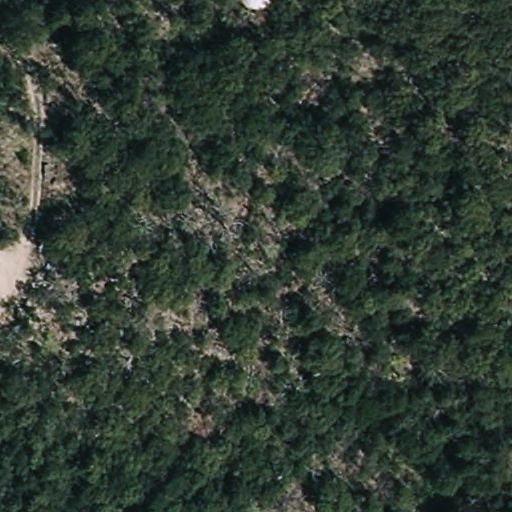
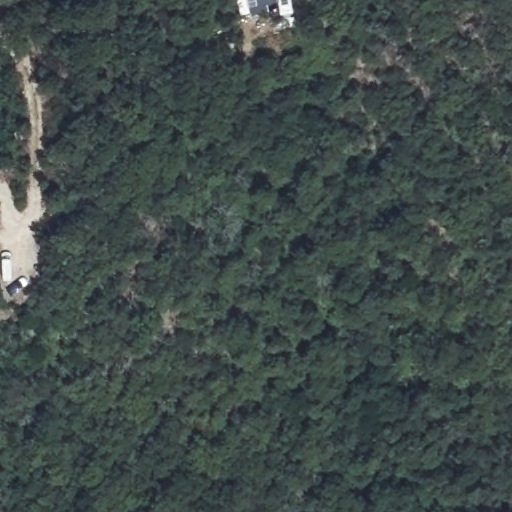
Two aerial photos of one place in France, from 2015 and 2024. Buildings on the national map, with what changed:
unchanged [(266,8),(257,10),(247,5),(243,0),(275,0),(272,5),(266,8)]

